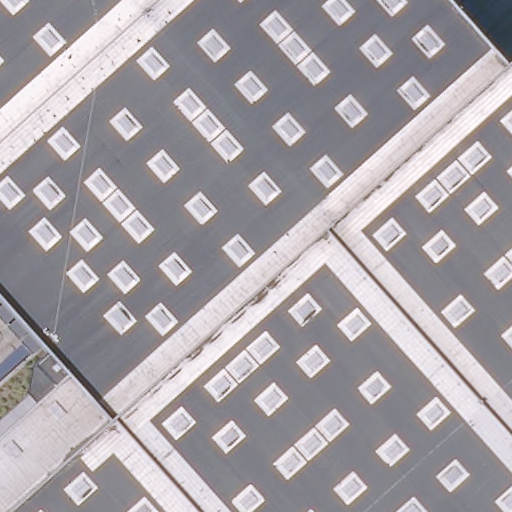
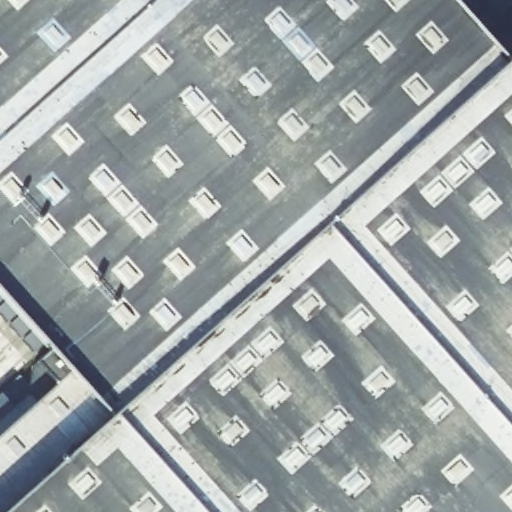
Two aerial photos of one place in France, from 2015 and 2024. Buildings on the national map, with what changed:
unchanged [(62,385),(41,362),(55,350),(0,288),(0,0),(459,0),(512,60),(512,512),(0,512),(0,440),(62,385)]

